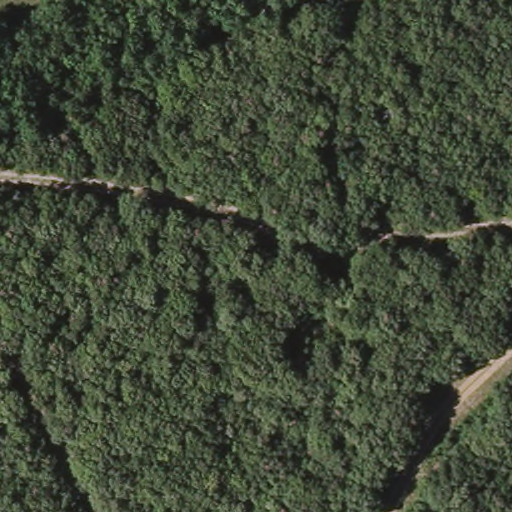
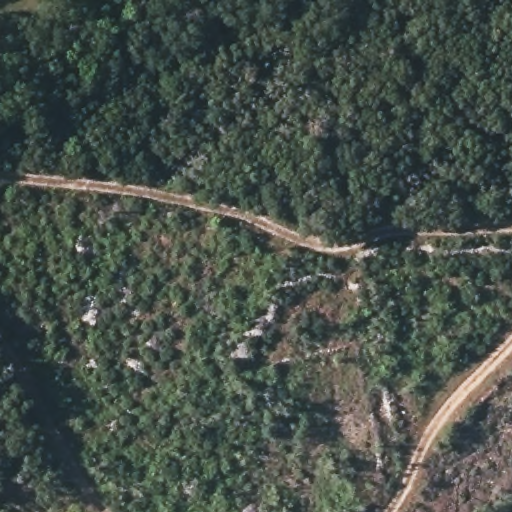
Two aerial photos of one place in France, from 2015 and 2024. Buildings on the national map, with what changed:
[]

